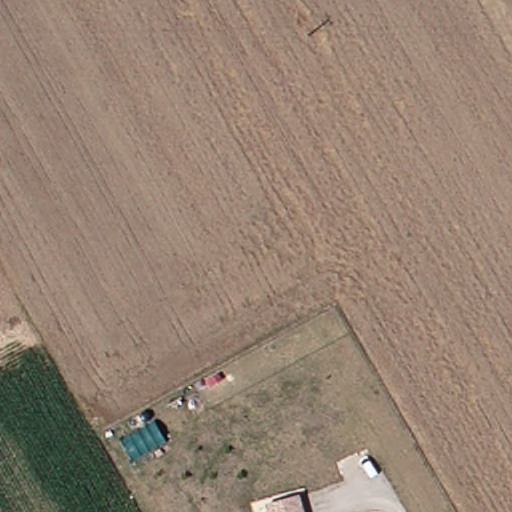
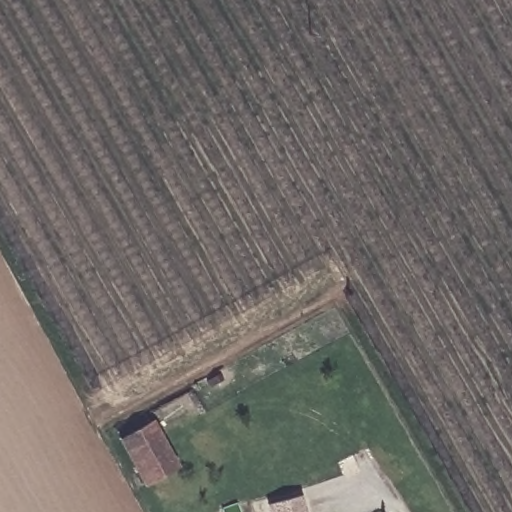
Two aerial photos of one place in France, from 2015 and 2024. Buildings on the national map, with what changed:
new [(154,418),(180,466),(144,486),(119,439),(154,418)]
unchanged [(307,494),(311,512),(276,512),(273,500),(307,494)]

